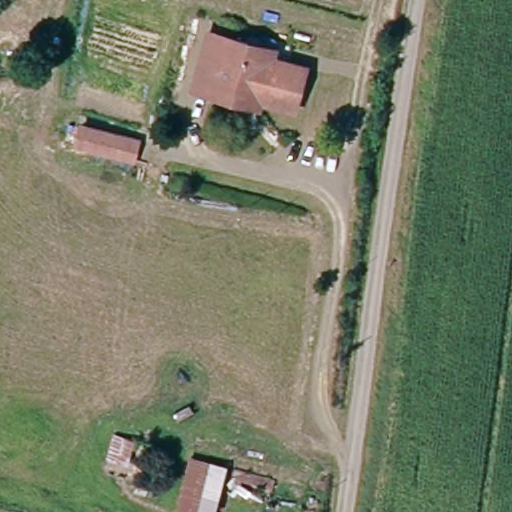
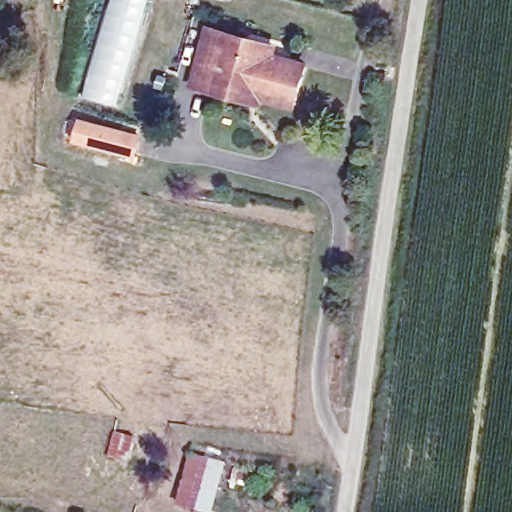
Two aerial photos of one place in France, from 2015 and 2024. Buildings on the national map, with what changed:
new [(114,0),(148,0),(150,1),(118,107),(85,97),(114,0)]
unchanged [(217,93),(194,85),(211,27),(249,39),(277,48),(273,60),(305,70),(295,106),(263,96),(260,106),(217,93)]
unchanged [(138,132),(131,165),(70,144),(75,118),(138,132)]
unchanged [(225,463),(213,512),(209,512),(175,508),(186,452),(225,463)]

